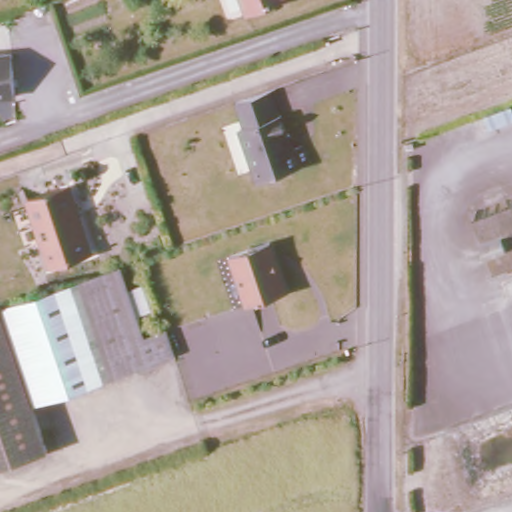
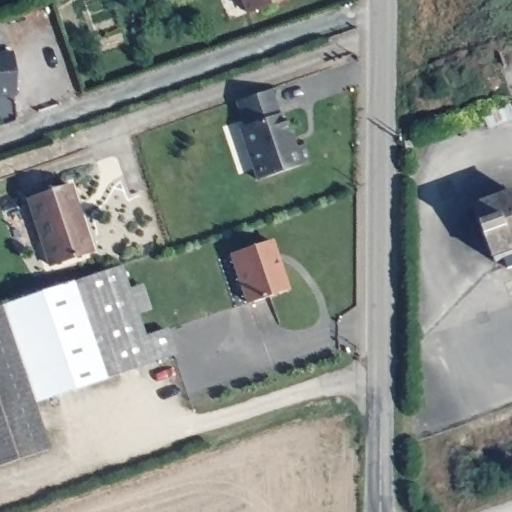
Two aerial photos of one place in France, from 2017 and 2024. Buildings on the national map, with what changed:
unchanged [(252,11),(247,0),(281,0),(252,11)]
unchanged [(0,101),(0,50),(17,51),(17,101),(0,101)]
unchanged [(282,116),(284,115),(290,134),(291,134),(292,134),(293,134),(294,134),(294,135),(299,149),(307,146),(312,164),(262,182),(245,130),(249,128),(240,104),(274,92),(282,116)]
unchanged [(95,250),(52,264),(31,198),(73,184),(95,250)]
unchanged [(512,193),(512,253),(500,258),(477,208),(512,193)]
unchanged [(265,239),(281,290),(242,302),(225,252),(265,239)]
unchanged [(147,336),(170,328),(179,354),(35,402),(52,447),(52,449),(0,466),(0,305),(123,264),(147,336)]

